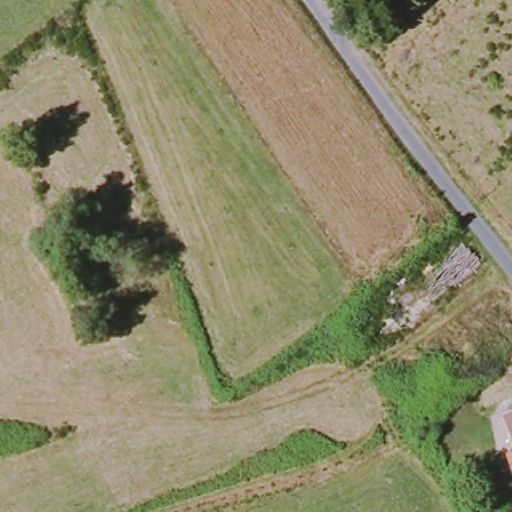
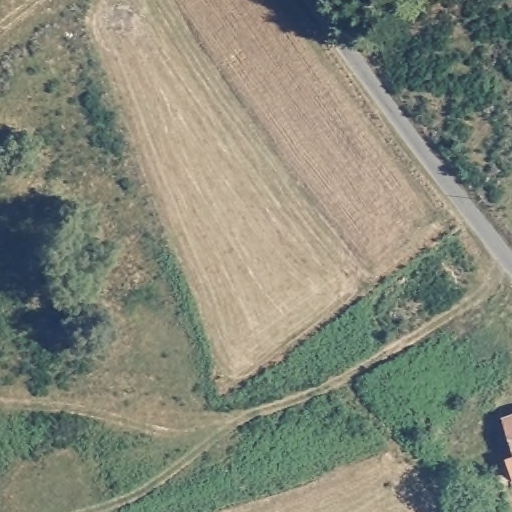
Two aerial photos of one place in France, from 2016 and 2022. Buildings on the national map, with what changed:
unchanged [(512,420),(512,453),(504,423),(512,420)]
unchanged [(512,455),(512,480),(506,458),(512,455)]

